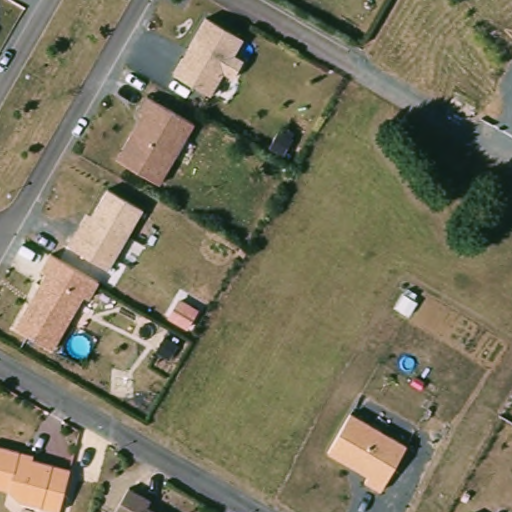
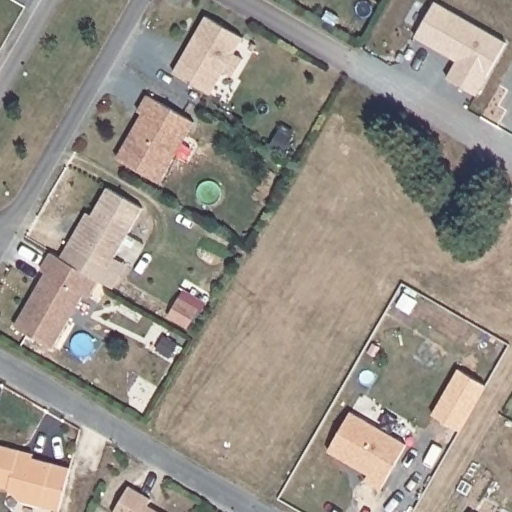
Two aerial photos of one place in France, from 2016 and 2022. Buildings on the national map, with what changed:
new [(435,2),(507,42),(477,97),(446,80),(457,62),(416,37),(435,2)]
unchanged [(245,35),(236,52),(248,59),(238,77),(225,71),(214,95),(176,75),(207,14),(245,35)]
unchanged [(197,121),(160,187),(117,161),(144,113),(139,111),(149,95),(197,121)]
unchanged [(145,207),(109,271),(69,247),(87,213),(94,215),(110,186),(145,207)]
unchanged [(104,281),(94,300),(86,295),(56,350),(16,328),(47,275),(41,271),(54,249),(104,281)]
unchanged [(351,414),(407,445),(382,490),(364,482),(367,474),(328,452),(351,414)]
unchanged [(54,508),(16,499),(4,486),(0,486),(0,445),(14,448),(27,452),(27,456),(65,466),(54,508)]
unchanged [(147,503),(144,509),(148,512),(113,512),(125,491),(147,503)]
unchanged [(475,512),(472,512),(473,511),(475,512)]

